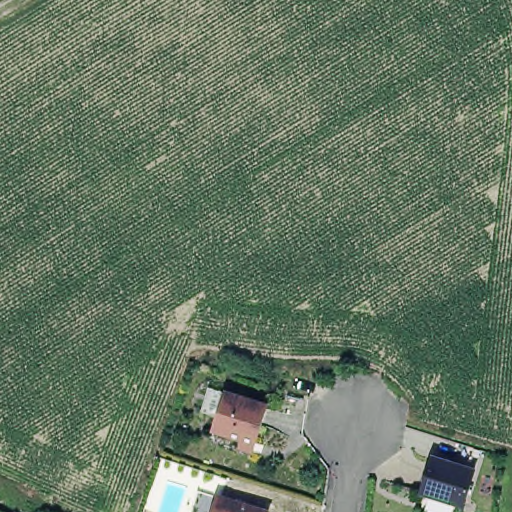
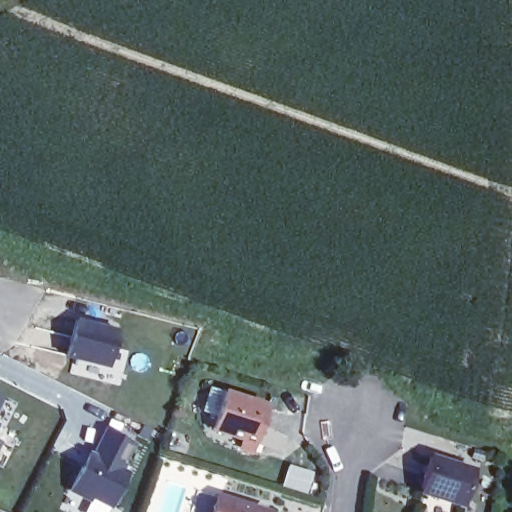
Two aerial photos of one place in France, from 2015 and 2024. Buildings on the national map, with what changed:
new [(67,358),(75,321),(119,331),(109,369),(67,358)]
unchanged [(238,450),(240,442),(212,432),(217,417),(203,414),(208,390),(267,405),(255,457),(238,450)]
new [(6,397),(0,408),(0,394),(6,397)]
new [(142,447),(115,512),(73,491),(105,427),(142,447)]
unchanged [(422,494),(432,459),(477,472),(466,510),(422,494)]
unchanged [(270,512),(215,512),(220,498),(270,512)]

